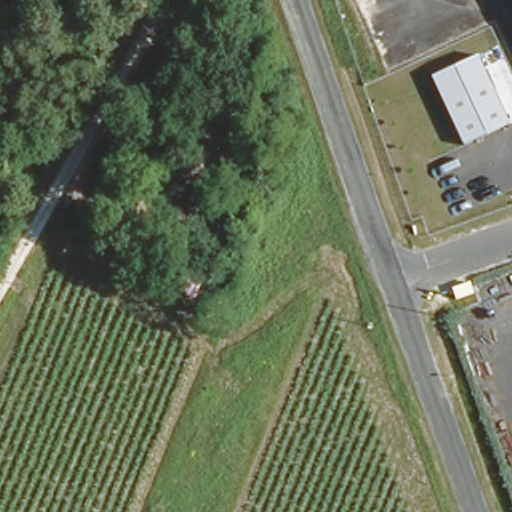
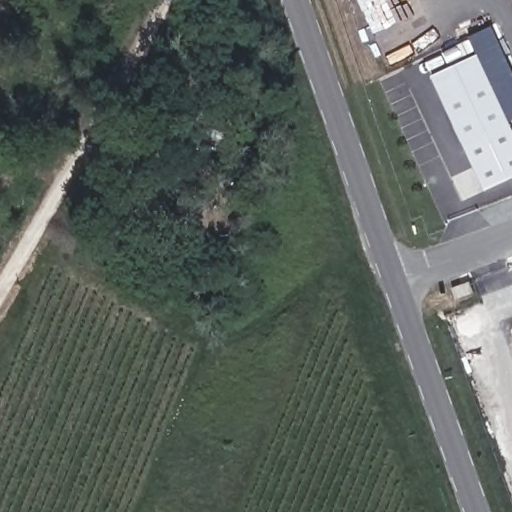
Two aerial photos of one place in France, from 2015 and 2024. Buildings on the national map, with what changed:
unchanged [(511,124),(462,144),(431,75),(478,54),(511,124)]
new [(512,177),(484,190),(462,144),(511,124),(512,126),(512,177)]
unchanged [(202,255),(175,238),(193,208),(220,224),(202,255)]

